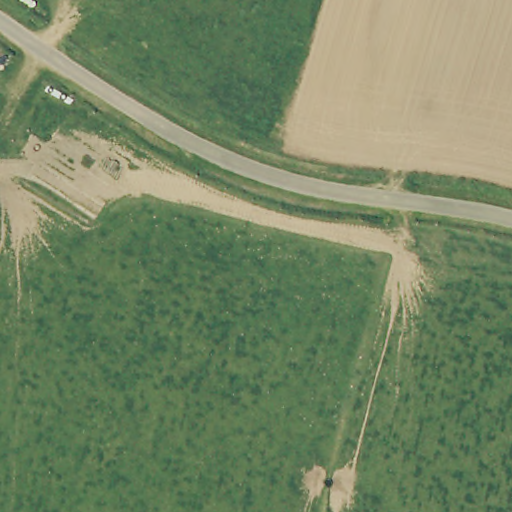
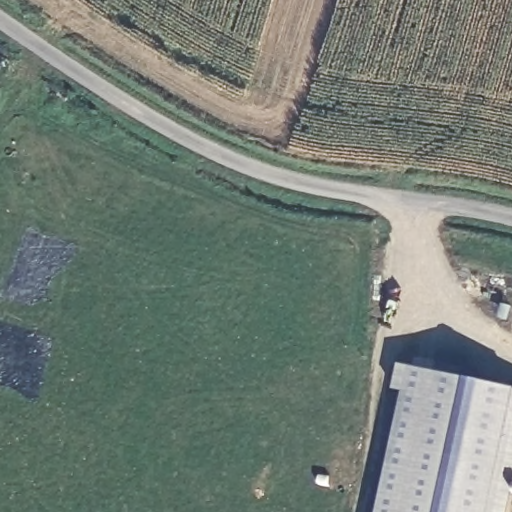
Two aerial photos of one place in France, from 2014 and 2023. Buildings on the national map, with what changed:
new [(402,391),(393,389),(398,363),(512,386),(512,490),(507,512),(377,512),(402,391)]

